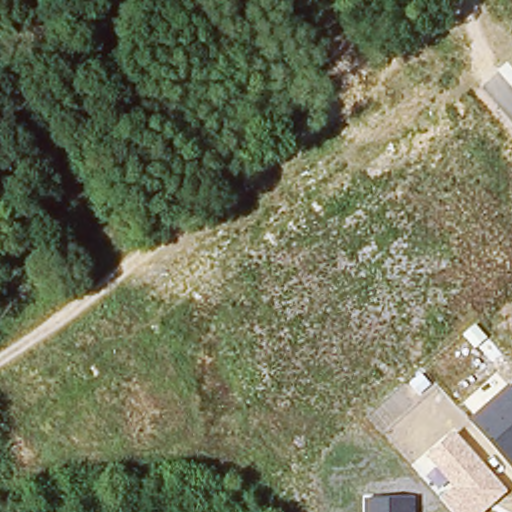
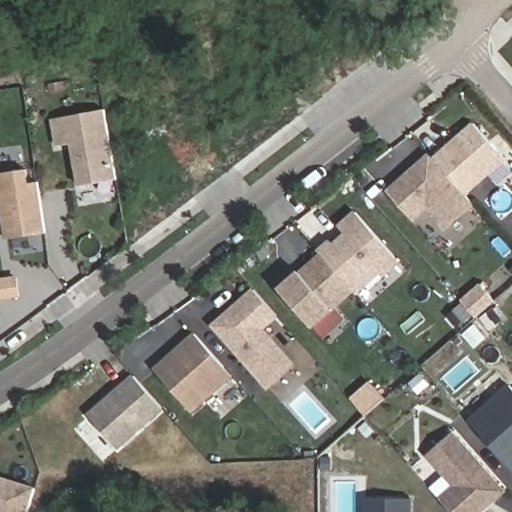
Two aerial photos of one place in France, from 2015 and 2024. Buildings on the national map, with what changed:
new [(56,119),(106,111),(117,179),(78,184),(73,144),(60,146),(56,119)]
new [(475,124),(506,159),(466,195),(435,159),(475,124)]
new [(431,155),(435,159),(466,195),(474,203),(447,227),(428,206),(415,217),(391,191),(431,155)]
new [(47,234),(5,241),(0,204),(0,173),(27,170),(29,182),(39,182),(47,234)]
new [(330,240),(335,244),(346,234),(339,225),(355,211),(399,260),(382,275),(379,270),(355,291),(353,288),(320,252),(318,250),(330,240)]
new [(320,252),(353,288),(312,324),(280,287),(320,252)]
new [(494,300),(475,316),(462,301),(481,285),(494,300)]
new [(263,328),(295,365),(269,387),(215,325),(255,290),(278,316),(263,328)]
new [(232,377),(193,412),(155,370),(165,361),(173,354),(195,334),(232,377)]
new [(163,408),(118,448),(90,416),(134,376),(163,408)]
unchanged [(508,384),(512,388),(512,467),(469,420),(508,384)]
unchanged [(453,512),(441,497),(453,487),(427,457),(454,432),(508,491),(484,512),(453,512)]
new [(36,488),(29,512),(0,512),(0,480),(2,478),(36,488)]
unchanged [(365,512),(365,498),(414,497),(414,512),(365,512)]

